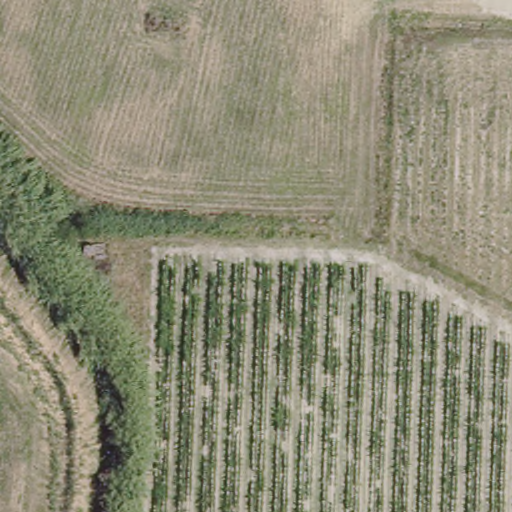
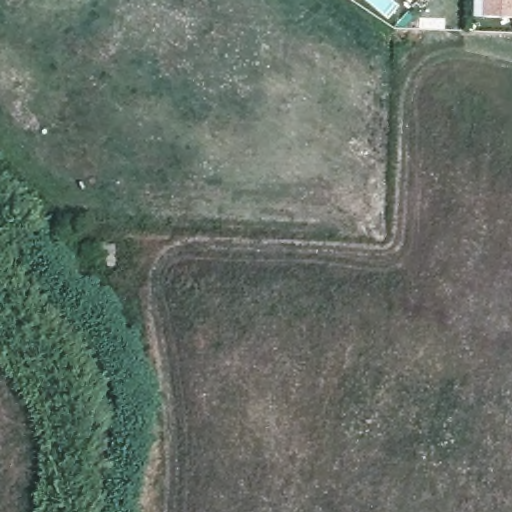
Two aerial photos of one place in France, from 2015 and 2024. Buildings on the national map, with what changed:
new [(481,0),(512,0),(512,15),(481,15),(481,0)]

